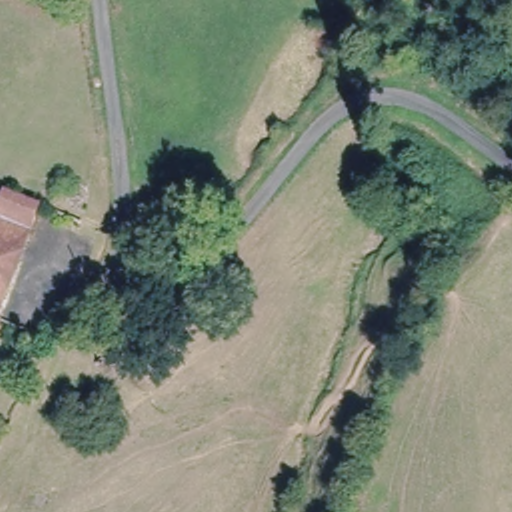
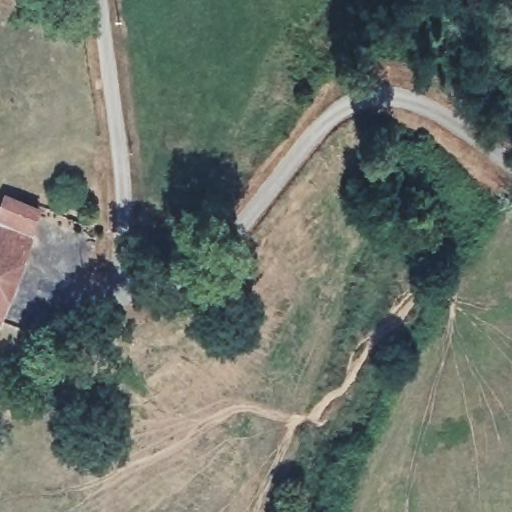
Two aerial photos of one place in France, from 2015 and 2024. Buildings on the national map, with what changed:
unchanged [(0,216),(0,191),(3,184),(34,200),(27,227),(0,216)]
unchanged [(0,302),(0,216),(27,227),(22,239),(0,302)]

